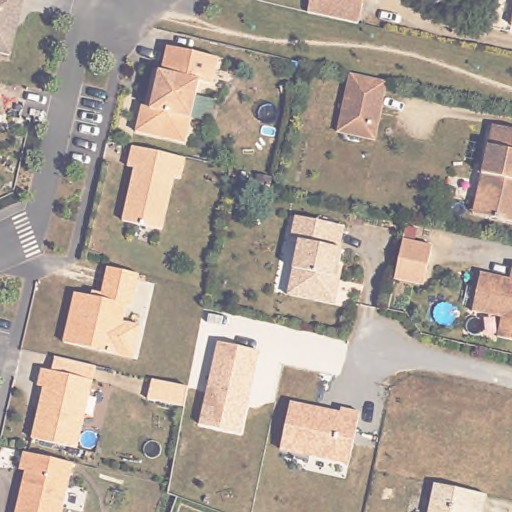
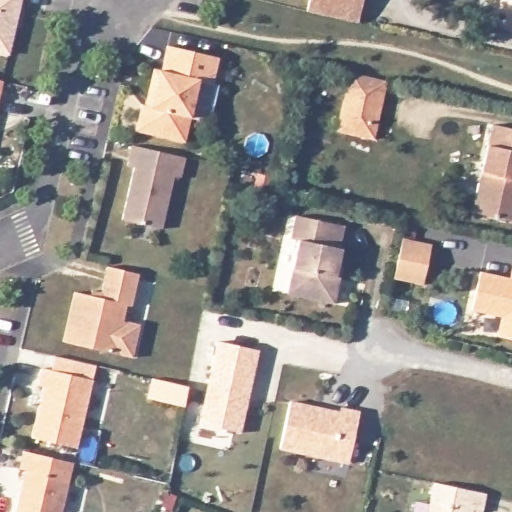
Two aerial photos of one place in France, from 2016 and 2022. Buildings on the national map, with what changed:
unchanged [(0,50),(0,0),(22,0),(10,52),(0,50)]
unchanged [(364,0),(364,4),(360,23),(309,13),(311,0),(349,0),(364,0)]
unchanged [(157,67),(165,69),(171,44),(222,56),(215,82),(202,80),(187,141),(139,130),(145,103),(149,104),(152,91),(157,67)]
unchanged [(340,130),(352,71),(389,79),(378,139),(340,130)]
unchanged [(0,100),(0,96),(1,96),(0,100)]
unchanged [(492,125),(512,128),(512,222),(476,216),(492,125)]
unchanged [(183,155),(188,156),(183,176),(177,175),(164,227),(125,219),(137,165),(130,164),(135,144),(183,155)]
unchanged [(346,240),(349,242),(341,276),(345,277),(340,297),(294,287),(306,233),(299,231),(305,207),(351,217),(346,240)]
unchanged [(435,242),(426,287),(396,281),(405,236),(435,242)]
unchanged [(503,314),(471,308),(478,269),(509,276),(512,261),(512,338),(497,335),(503,314)]
unchanged [(110,265),(141,272),(133,305),(128,303),(124,320),(141,323),(133,356),(64,340),(76,290),(92,294),(93,289),(103,291),(109,265),(110,265)]
unchanged [(261,353),(242,436),(198,425),(216,346),(261,353)]
unchanged [(37,437),(49,386),(43,385),(47,367),(98,380),(82,448),(37,437)]
unchanged [(350,463),(281,449),(289,401),(340,410),(340,406),(359,410),(350,463)]
unchanged [(66,512),(20,512),(25,492),(29,493),(30,488),(27,483),(31,469),(25,467),(29,450),(55,456),(78,462),(66,512)]
unchanged [(482,512),(480,512),(474,510),(474,512),(427,512),(433,482),(487,493),(482,512)]

